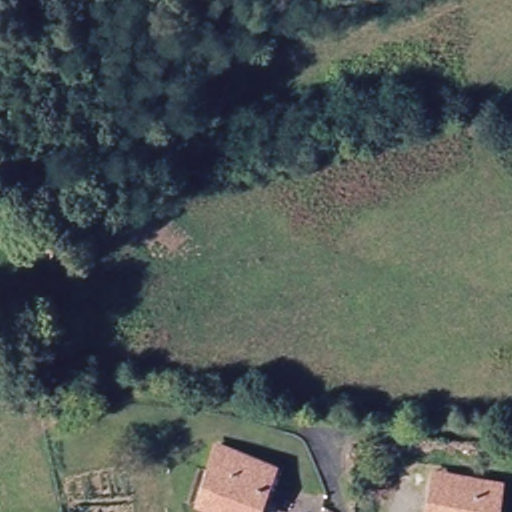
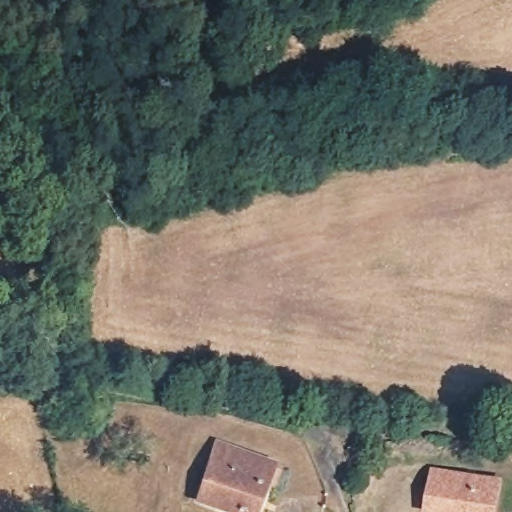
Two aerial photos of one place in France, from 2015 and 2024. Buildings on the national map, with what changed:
unchanged [(266,470),(258,487),(247,512),(214,512),(193,503),(191,503),(203,471),(204,468),(214,446),(224,451),(266,470)]
unchanged [(499,480),(496,498),(494,512),(474,512),(476,501),(477,490),(432,482),(434,470),(499,480)]
unchanged [(476,501),(474,512),(431,512),(428,511),(428,506),(432,482),(477,490),(476,501)]

